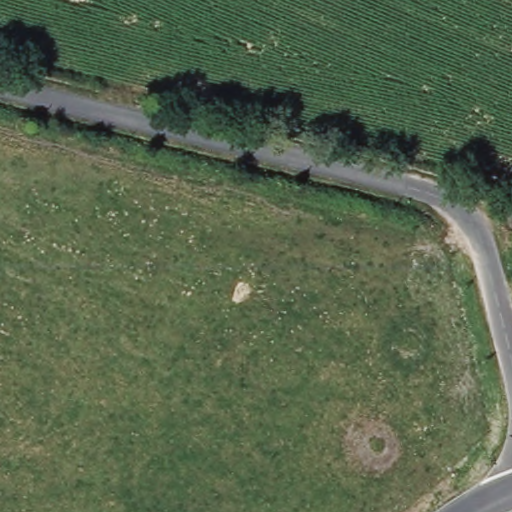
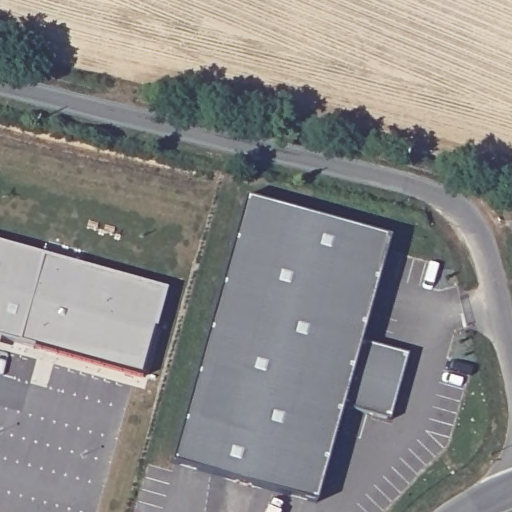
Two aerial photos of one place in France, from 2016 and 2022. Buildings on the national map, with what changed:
new [(388,236),(360,338),(408,352),(390,418),(341,402),(314,500),(170,460),(243,196),(388,236)]
new [(164,287),(142,375),(0,335),(0,242),(164,287)]

